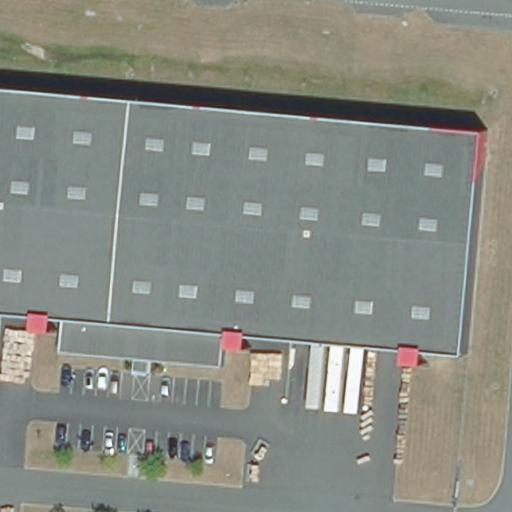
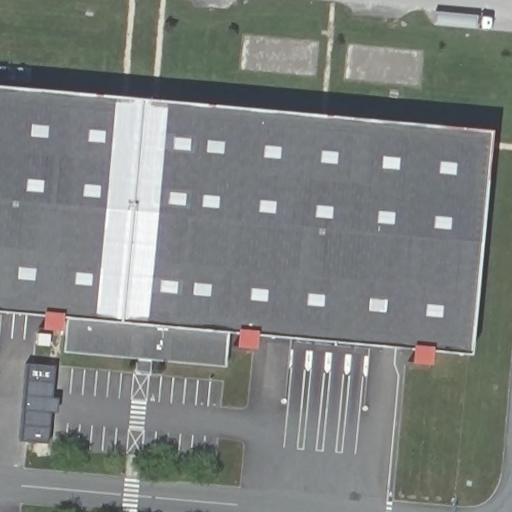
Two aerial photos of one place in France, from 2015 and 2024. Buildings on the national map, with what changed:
unchanged [(36,90),(245,109),(392,124),(488,133),(480,214),(466,357),(327,344),(228,334),(224,368),(73,354),(65,353),(68,319),(0,312),(0,87),(36,90)]

